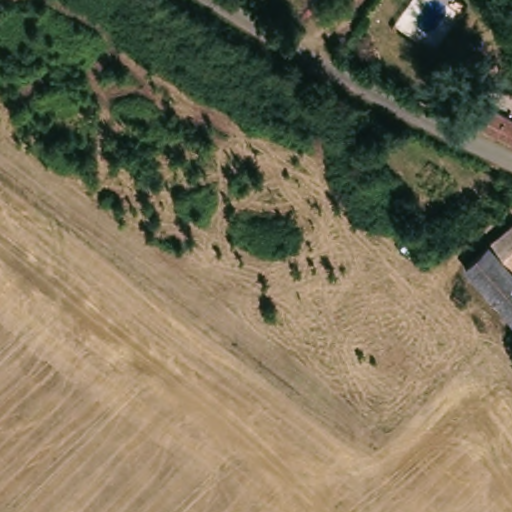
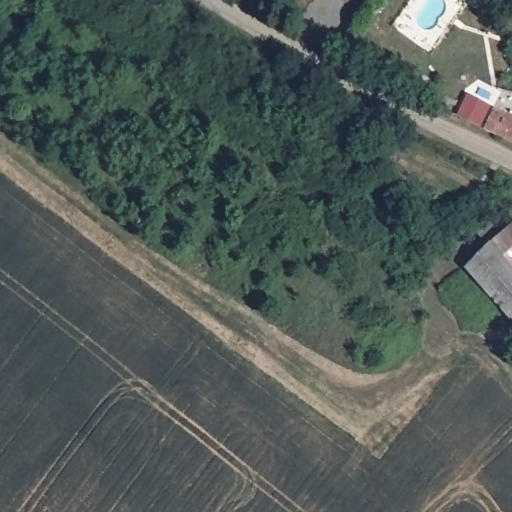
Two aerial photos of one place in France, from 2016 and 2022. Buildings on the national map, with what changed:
unchanged [(485,112),(512,122),(512,143),(477,127),(485,112)]
unchanged [(483,247),(501,233),(512,223),(512,322),(498,334),(467,298),(453,282),(483,247)]

